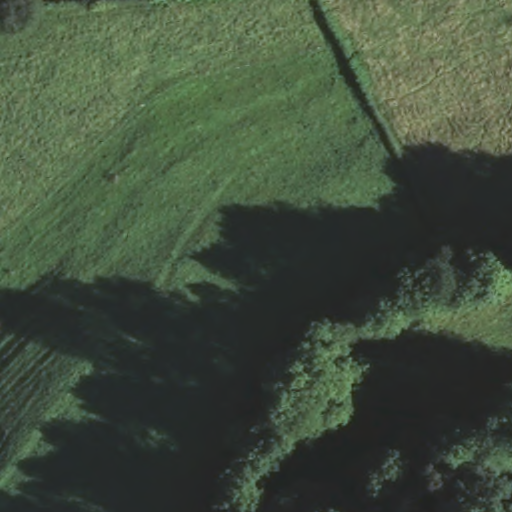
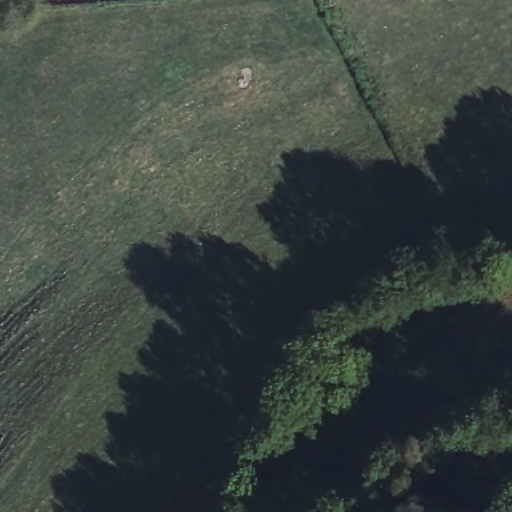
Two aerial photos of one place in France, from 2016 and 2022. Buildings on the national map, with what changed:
[]

